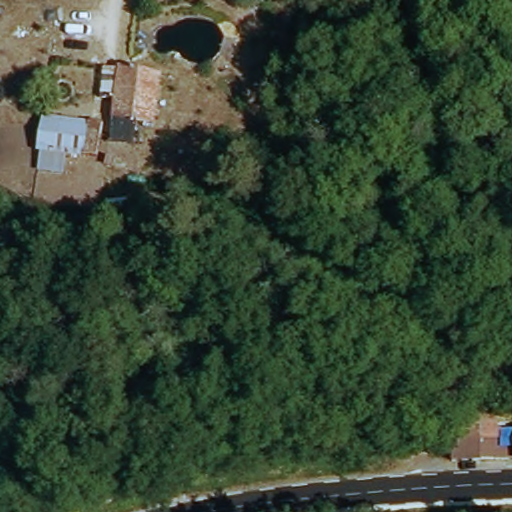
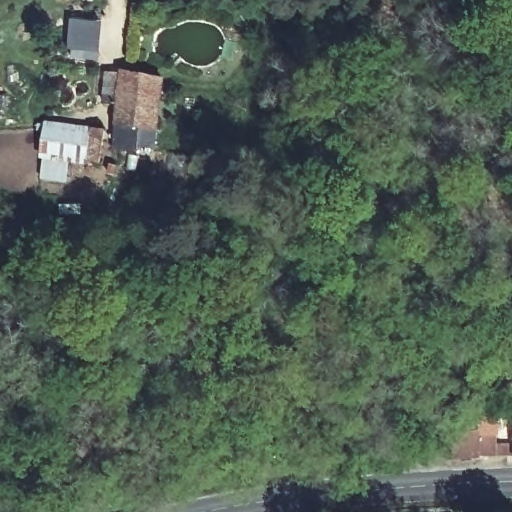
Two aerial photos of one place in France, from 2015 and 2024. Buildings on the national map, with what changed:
new [(68,56),(69,18),(101,19),(97,57),(68,56)]
unchanged [(113,73),(158,69),(161,122),(142,123),(143,147),(118,149),(113,73)]
unchanged [(42,161),(39,161),(47,122),(101,129),(99,165),(86,165),(84,170),(69,169),(66,184),(40,183),(42,161)]
demolished [(119,175),(105,176),(104,155),(118,155),(119,175)]
new [(125,187),(112,188),(111,167),(124,166),(125,187)]
unchanged [(492,424),(492,454),(459,454),(459,424),(492,424)]

